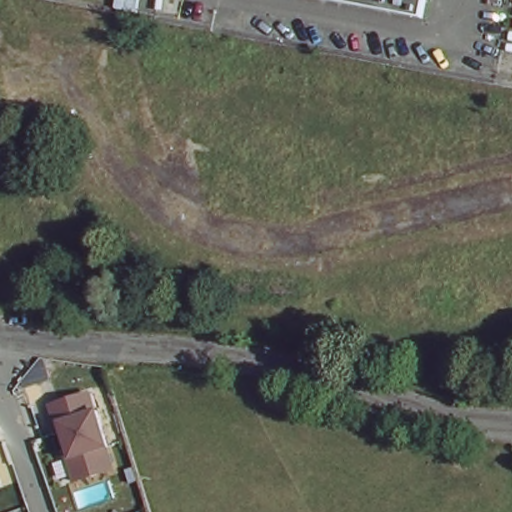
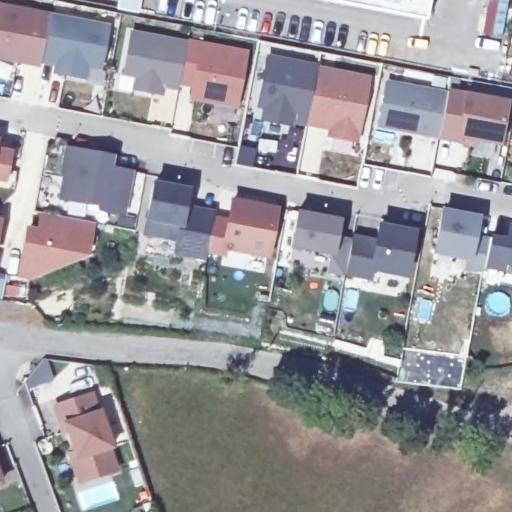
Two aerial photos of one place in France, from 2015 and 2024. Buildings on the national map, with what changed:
unchanged [(123,9),(125,0),(146,0),(143,13),(123,9)]
unchanged [(324,0),(428,0),(424,19),(324,0)]
new [(54,17),(45,63),(45,66),(0,57),(0,7),(54,17)]
new [(54,17),(112,28),(104,70),(92,67),(89,80),(58,74),(60,66),(45,63),(54,17)]
new [(182,89),(167,86),(166,94),(138,89),(140,76),(128,74),(136,33),(191,43),(191,42),(250,54),(240,106),(196,98),(198,86),(184,83),(182,89)]
new [(271,58),(321,67),(320,69),(310,123),(310,125),(295,122),(294,125),(266,120),(269,108),(262,106),(271,58)]
new [(320,69),(371,79),(359,140),(333,135),(334,128),(310,123),(320,69)]
new [(391,83),(450,94),(442,136),(383,125),(391,83)]
new [(450,94),(451,91),(510,103),(502,143),(463,135),(462,140),(442,136),(450,94)]
new [(68,174),(65,174),(70,147),(114,156),(112,170),(117,171),(117,168),(134,171),(127,212),(102,207),(102,204),(63,197),(68,174)]
new [(14,153),(9,180),(0,178),(0,150),(14,153)]
new [(158,184),(192,190),(189,207),(218,213),(217,218),(211,251),(209,259),(179,253),(182,240),(148,234),(158,184)]
new [(217,218),(232,221),(236,201),(280,209),(271,256),(229,247),(227,254),(211,251),(217,218)]
new [(30,231),(34,231),(35,229),(42,230),(45,212),(97,222),(90,254),(32,277),(22,275),(30,231)]
new [(447,212),(481,218),(477,238),(492,241),(486,270),(472,267),(473,259),(439,252),(447,212)]
new [(3,220),(0,236),(0,219),(3,220)]
new [(355,238),(379,242),(382,226),(417,233),(409,276),(375,269),(373,278),(348,273),(355,238)]
unchanged [(76,478),(50,406),(91,386),(117,465),(76,478)]
unchanged [(0,488),(0,471),(5,486),(0,488)]

